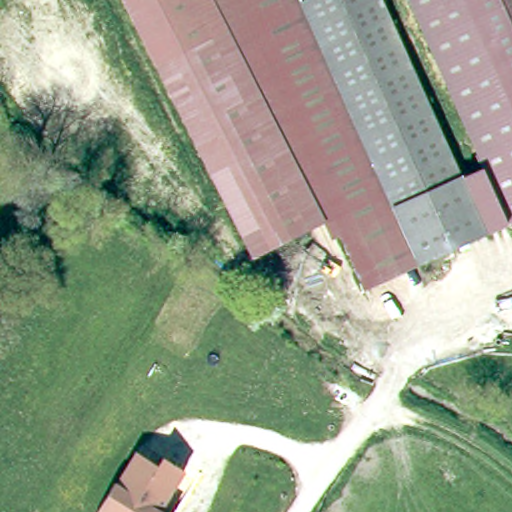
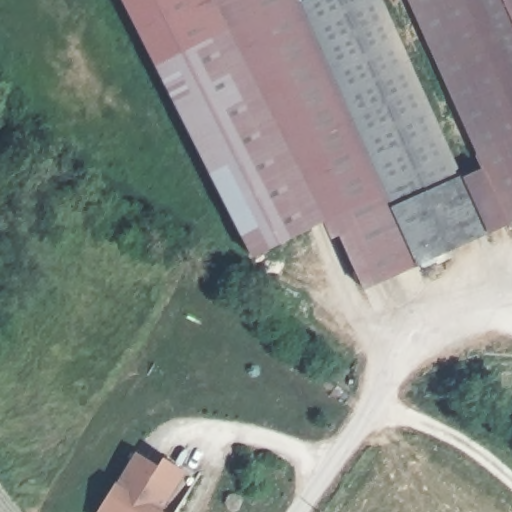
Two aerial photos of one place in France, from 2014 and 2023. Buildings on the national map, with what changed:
unchanged [(300,5),(168,60),(142,0),(297,0),(300,5)]
unchanged [(334,0),(381,0),(480,233),(413,261),(303,13),(334,0)]
unchanged [(452,33),(427,44),(408,0),(512,0),(512,6),(452,33)]
unchanged [(357,286),(325,213),(248,246),(168,60),(300,5),(303,13),(413,261),(357,286)]
unchanged [(452,33),(512,6),(512,223),(507,225),(427,44),(452,33)]
unchanged [(95,512),(133,449),(159,464),(163,457),(185,471),(165,510),(167,512),(95,512)]

